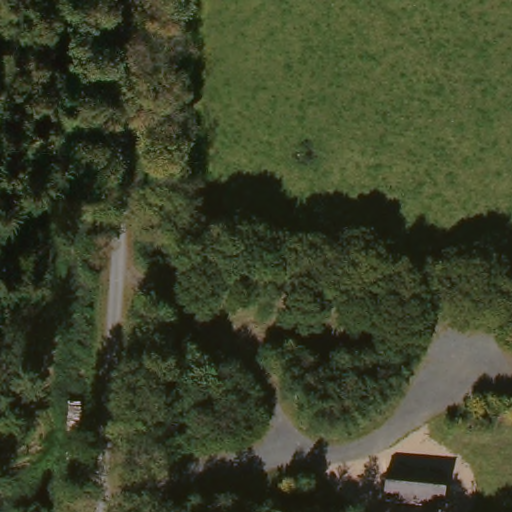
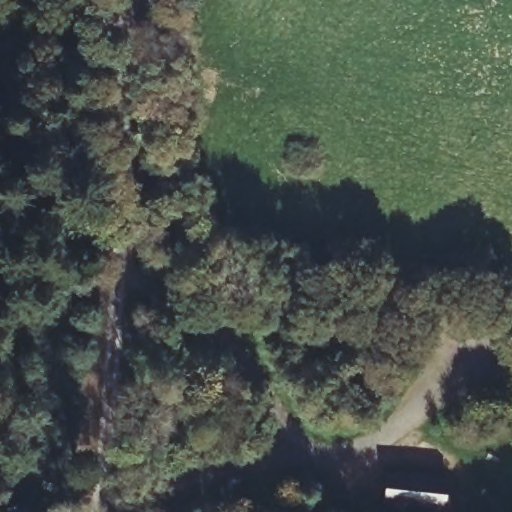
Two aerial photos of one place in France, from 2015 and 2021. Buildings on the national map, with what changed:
unchanged [(446,512),(440,512),(381,507),(384,470),(449,475),(446,512)]

